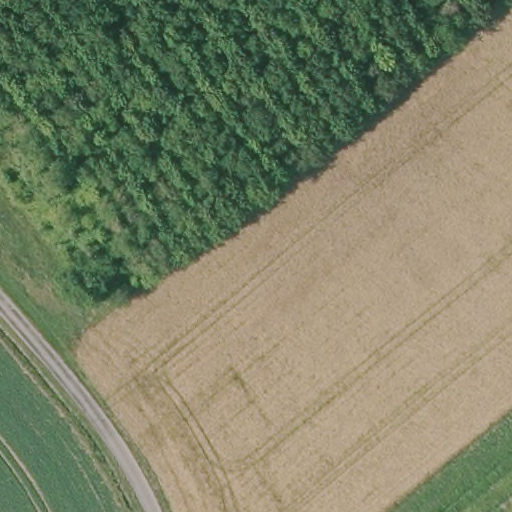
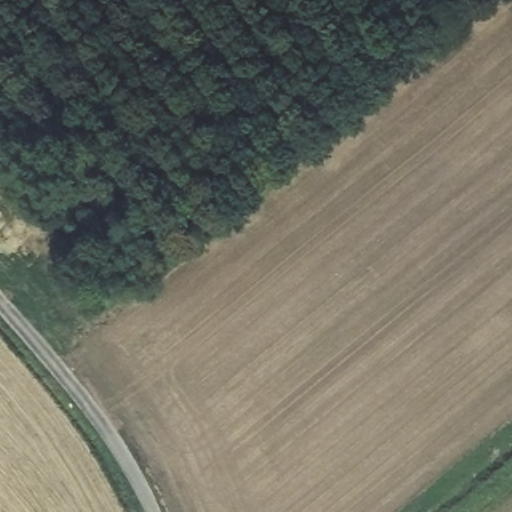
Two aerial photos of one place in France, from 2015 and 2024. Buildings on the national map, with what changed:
[]

